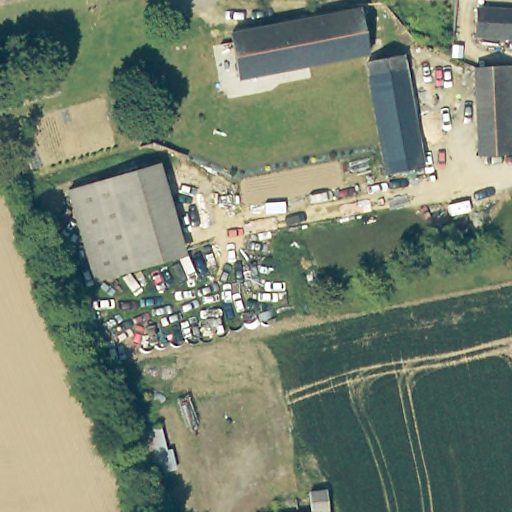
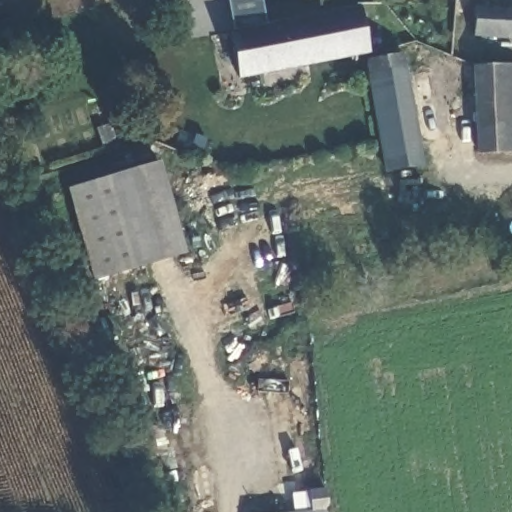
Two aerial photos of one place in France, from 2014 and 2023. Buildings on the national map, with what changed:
unchanged [(512,7),(512,36),(475,34),(477,5),(512,7)]
unchanged [(363,53),(235,75),(227,31),(355,7),(363,53)]
unchanged [(420,170),(351,182),(347,154),(380,149),(372,105),(365,60),(402,53),(420,170)]
unchanged [(473,92),(472,70),(512,66),(512,88),(473,92)]
unchanged [(479,156),(473,92),(512,88),(512,152),(479,156)]
unchanged [(184,255),(95,281),(69,190),(157,164),(184,255)]
unchanged [(162,473),(140,479),(129,437),(151,431),(162,473)]
unchanged [(327,512),(310,512),(308,492),(325,491),(327,512)]

